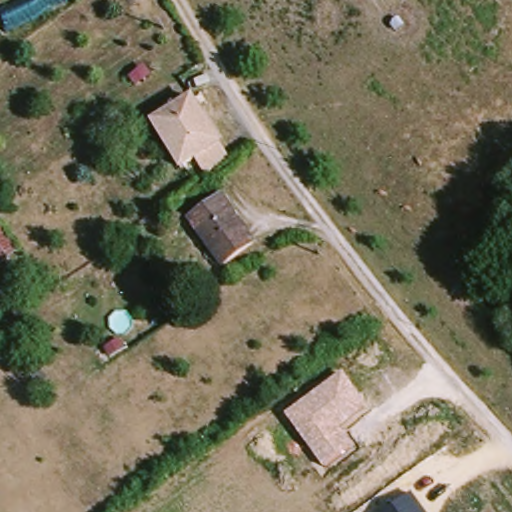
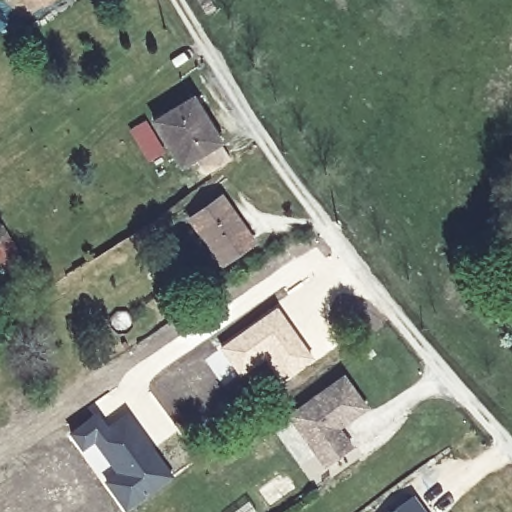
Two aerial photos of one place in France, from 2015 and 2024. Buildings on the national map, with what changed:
unchanged [(205,179),(196,163),(178,173),(154,128),(192,105),(228,166),(205,179)]
unchanged [(222,268),(189,221),(219,198),(254,245),(222,268)]
new [(276,305),(314,358),(255,399),(217,348),(276,305)]
unchanged [(369,407),(340,429),(354,447),(324,470),(285,417),(344,373),(369,407)]
new [(106,421),(126,405),(144,429),(174,476),(126,512),(124,512),(66,432),(98,409),(106,421)]
unchanged [(393,512),(413,497),(424,512),(393,512)]
new [(256,512),(230,512),(248,499),(256,512)]

